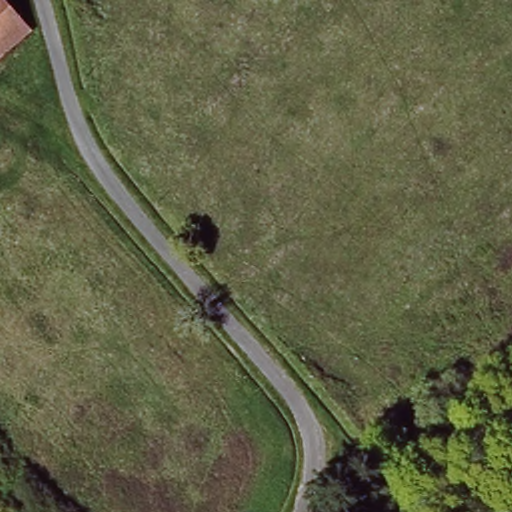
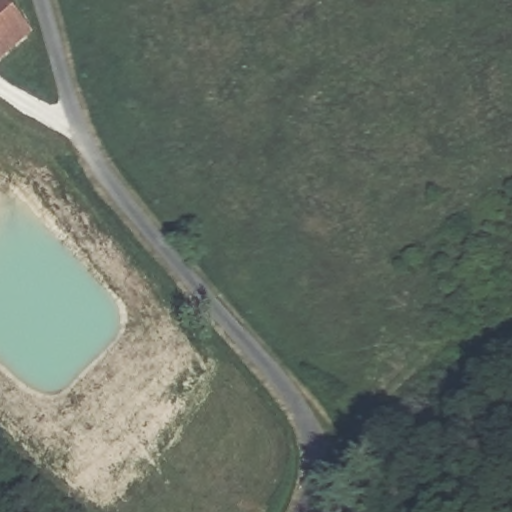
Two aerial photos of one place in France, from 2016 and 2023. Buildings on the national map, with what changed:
unchanged [(23,21),(30,30),(25,35),(0,55),(0,0),(4,0),(23,21)]

